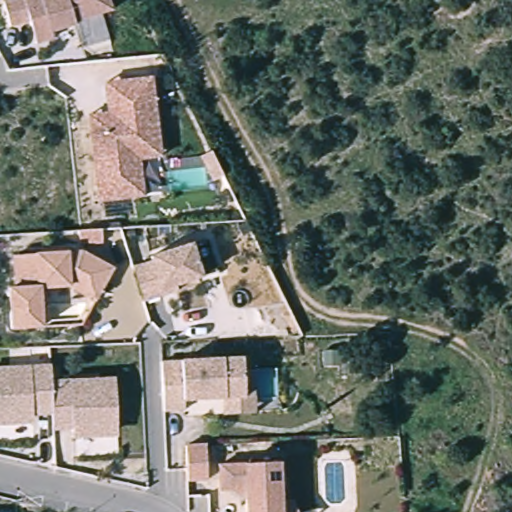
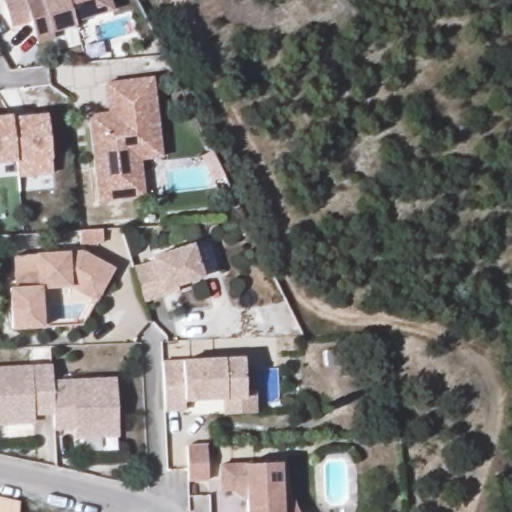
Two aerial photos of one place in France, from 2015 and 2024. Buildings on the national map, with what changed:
unchanged [(35,41),(31,24),(30,18),(10,24),(3,0),(109,0),(111,9),(73,19),(75,23),(50,30),(51,37),(35,41)]
unchanged [(140,160),(145,197),(138,198),(100,203),(88,117),(108,115),(105,85),(135,81),(151,79),(161,151),(161,158),(140,160)]
new [(10,116),(10,119),(45,114),(52,173),(17,177),(15,162),(0,164),(0,118),(10,116)]
unchanged [(134,270),(153,264),(151,258),(192,246),(202,279),(177,287),(178,292),(145,303),(134,270)]
unchanged [(10,285),(16,285),(15,252),(82,249),(113,266),(102,285),(95,297),(70,283),(40,285),(42,324),(12,325),(10,285)]
unchanged [(255,414),(225,416),(225,401),(185,402),(185,412),(165,413),(164,384),(163,364),(244,361),(245,395),(255,394),(255,414)]
unchanged [(33,413),(33,417),(27,423),(0,424),(0,370),(51,368),(51,384),(52,403),(53,412),(33,413)]
unchanged [(115,381),(117,430),(111,436),(80,437),(73,431),(73,428),(53,429),(53,412),(52,403),(51,384),(115,381)]
unchanged [(187,448),(207,447),(208,482),(188,483),(187,448)]
unchanged [(247,512),(247,500),(232,491),(221,492),(220,467),(280,464),(282,504),(295,504),(298,512),(247,512)]

